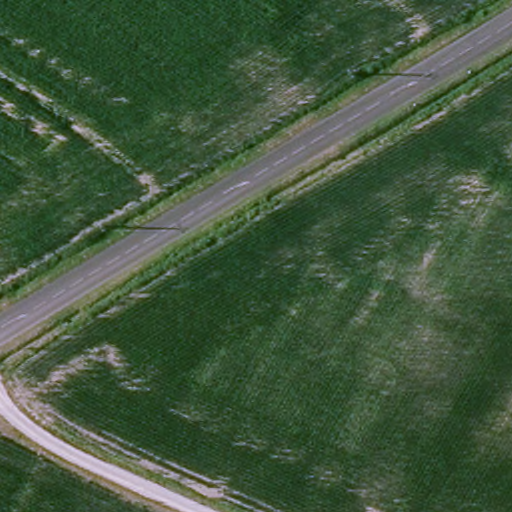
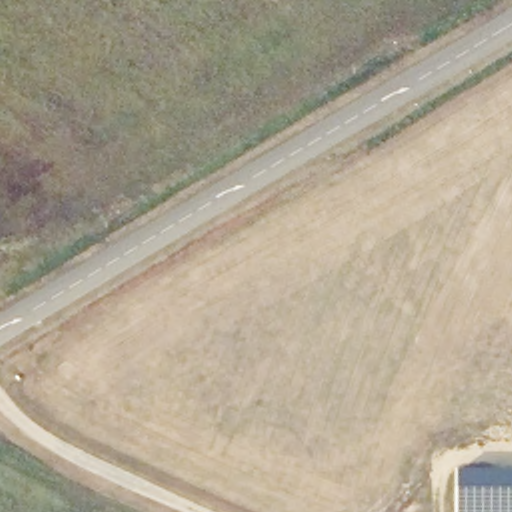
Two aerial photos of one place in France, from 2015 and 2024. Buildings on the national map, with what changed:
new [(512,472),(512,512),(453,512),(453,472),(512,472)]

